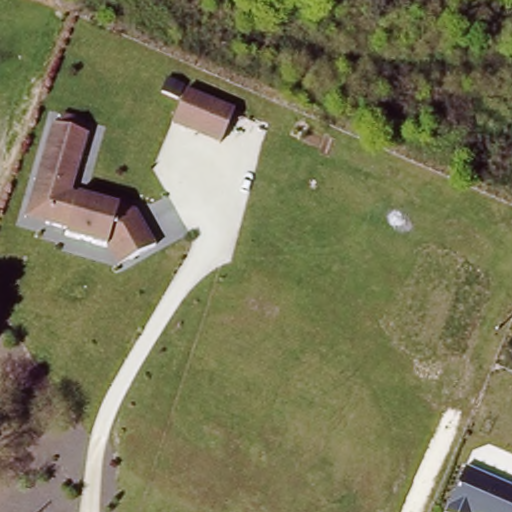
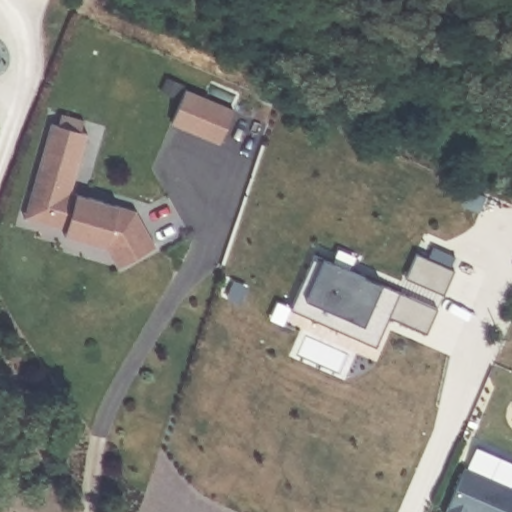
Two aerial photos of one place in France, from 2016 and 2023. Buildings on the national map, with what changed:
unchanged [(235,109),(220,144),(172,123),(187,87),(235,109)]
unchanged [(79,193),(121,203),(120,207),(139,212),(157,247),(117,266),(105,246),(65,234),(67,228),(25,217),(50,123),(90,134),(73,190),(79,193)]
new [(452,269),(456,271),(429,335),(390,318),(377,348),(292,310),(315,256),(325,260),(382,284),(402,293),(417,254),(430,258),(436,245),(459,256),(452,269)]
demolished [(399,343),(437,254),(471,272),(465,285),(488,302),(462,371),(399,343)]
unchanged [(444,512),(465,465),(512,485),(512,512),(444,512)]

